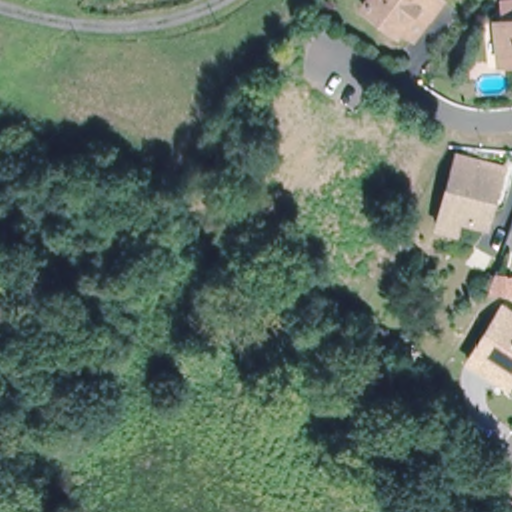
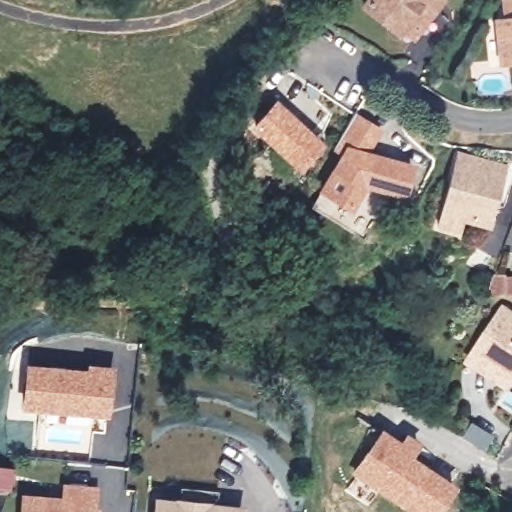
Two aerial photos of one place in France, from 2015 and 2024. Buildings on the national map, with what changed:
unchanged [(375,16),(359,3),(362,0),(436,0),(437,1),(426,15),(409,37),(397,28),(395,31),(375,16)]
unchanged [(501,61),(497,21),(507,20),(504,0),(512,0),(512,60),(501,61)]
new [(275,106),(320,147),(299,169),(255,129),(275,106)]
new [(344,155),(334,149),(354,117),(379,132),(365,155),(413,168),(405,195),(366,185),(351,209),(322,192),(344,155)]
unchanged [(433,226),(437,211),(454,153),(500,165),(491,198),(484,224),(479,223),(457,217),(453,231),(433,226)]
unchanged [(489,291),(494,277),(512,278),(512,293),(489,291)]
unchanged [(496,378),(468,360),(503,307),(512,313),(512,380),(508,387),(496,378)]
new [(113,366),(109,411),(104,411),(20,403),(24,363),(91,369),(92,363),(113,366)]
new [(410,512),(351,472),(383,427),(401,440),(407,431),(421,443),(413,456),(459,486),(442,512),(410,512)]
new [(18,512),(20,492),(60,496),(61,481),(98,485),(95,512),(18,512)]
new [(151,512),(153,495),(179,498),(181,487),(218,490),(218,501),(243,505),(242,512),(151,512)]

